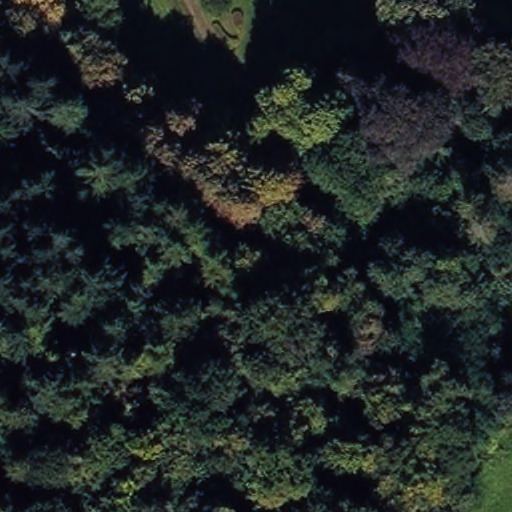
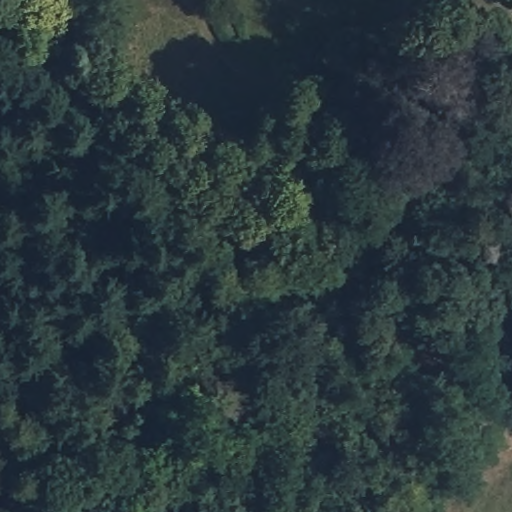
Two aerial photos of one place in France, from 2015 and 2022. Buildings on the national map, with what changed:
[]

